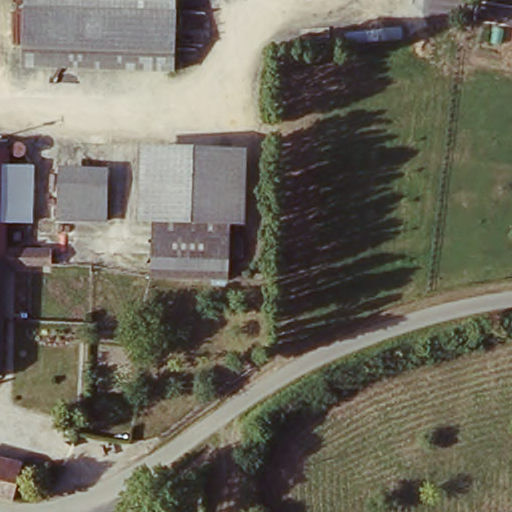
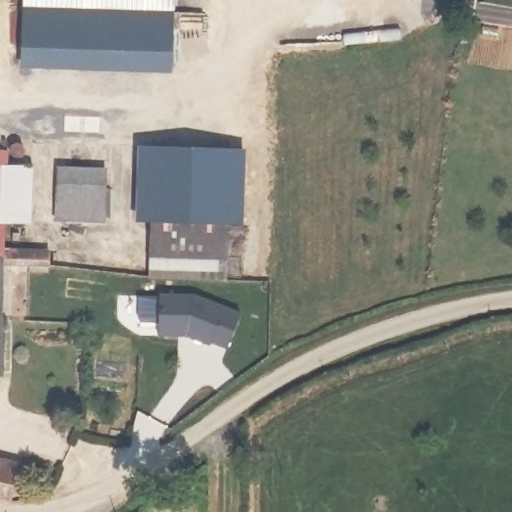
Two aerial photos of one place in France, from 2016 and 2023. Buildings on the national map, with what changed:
unchanged [(21,0),(172,0),(172,15),(21,12),(21,0)]
unchanged [(171,77),(21,74),(21,12),(172,15),(171,77)]
unchanged [(7,147),(7,171),(6,222),(5,253),(53,254),(53,273),(5,273),(3,384),(0,384),(0,147),(7,147)]
unchanged [(150,228),(135,226),(139,149),(250,152),(248,229),(228,233),(227,286),(148,283),(150,228)]
unchanged [(56,228),(58,170),(110,171),(108,229),(56,228)]
unchanged [(7,171),(34,172),(34,223),(6,222),(7,171)]
new [(152,298),(153,289),(162,290),(161,296),(195,297),(240,314),(228,344),(211,339),(209,342),(188,331),(153,332),(153,328),(139,328),(139,298),(152,298)]
unchanged [(0,501),(0,464),(18,469),(9,504),(0,501)]

